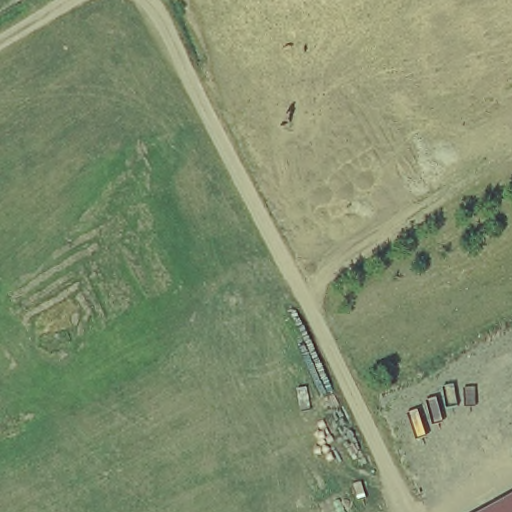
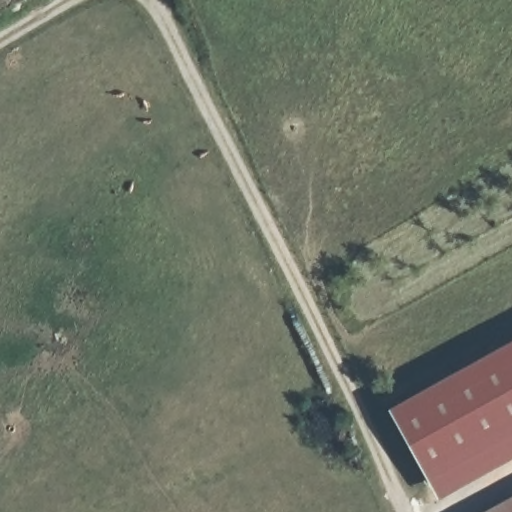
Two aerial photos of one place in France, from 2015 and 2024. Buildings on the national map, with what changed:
new [(439,498),(388,409),(512,341),(512,458),(439,498)]
new [(481,512),(512,495),(512,512),(481,512)]
demolished [(488,512),(512,499),(512,512),(488,512)]

